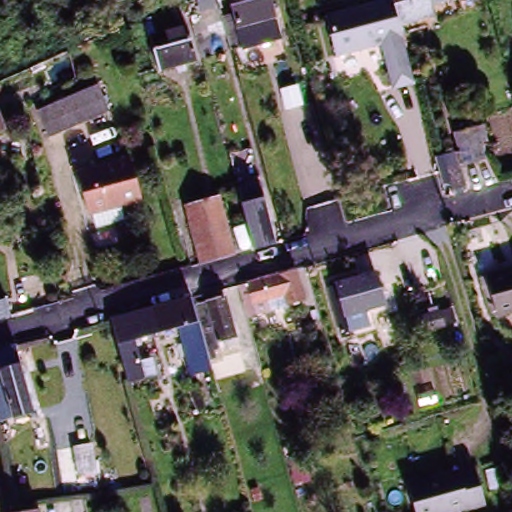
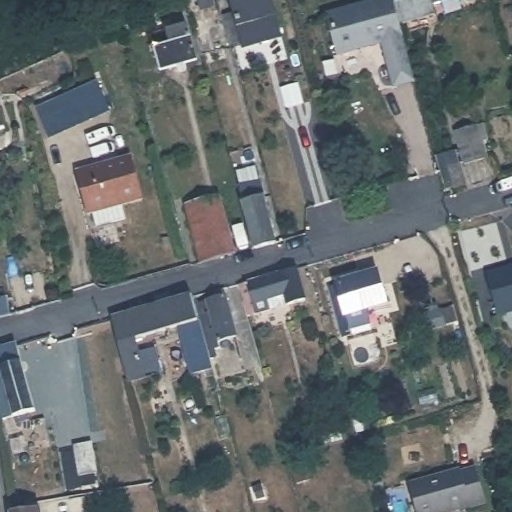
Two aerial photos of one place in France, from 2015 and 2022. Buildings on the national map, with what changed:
unchanged [(220,16),(230,13),(226,0),(271,0),(273,10),(280,39),(241,48),(240,44),(231,46),(227,47),(220,16)]
unchanged [(382,40),(337,51),(327,9),(363,0),(393,0),(393,1),(398,22),(412,78),(393,83),(382,40)]
unchanged [(393,0),(427,0),(428,5),(432,3),(435,12),(398,22),(393,1),(393,0)]
unchanged [(428,5),(427,0),(444,0),(432,3),(428,5)]
unchanged [(457,0),(459,0),(457,1),(457,0)]
unchanged [(216,23),(227,57),(206,63),(199,29),(216,23)]
unchanged [(191,30),(200,66),(163,74),(155,40),(191,30)]
unchanged [(97,87),(109,112),(49,139),(37,113),(97,87)]
unchanged [(16,133),(0,138),(0,117),(12,115),(16,133)]
unchanged [(498,132),(493,133),(498,151),(474,157),(465,122),(493,115),(498,132)]
unchanged [(471,154),(477,177),(463,181),(457,158),(471,154)]
unchanged [(135,156),(145,198),(121,203),(124,215),(95,222),(92,210),(87,211),(78,170),(95,166),(135,156)]
unchanged [(239,189),(261,184),(264,197),(275,245),(254,250),(239,189)]
unchanged [(188,205),(220,197),(234,255),(202,262),(188,205)]
unchanged [(485,272),(490,271),(512,265),(512,309),(502,312),(496,314),(485,272)]
unchanged [(378,267),(385,295),(371,298),(376,317),(352,323),(347,304),(340,276),(378,267)]
unchanged [(300,269),(307,302),(250,317),(241,283),(300,269)]
unchanged [(6,306),(0,307),(0,288),(2,287),(6,306)]
unchanged [(141,352),(147,376),(129,382),(117,341),(111,319),(191,296),(197,320),(176,325),(132,337),(135,350),(141,352)]
unchanged [(197,320),(201,333),(204,343),(207,342),(196,303),(220,296),(231,335),(222,337),(224,345),(215,347),(218,356),(208,360),(210,365),(210,367),(190,373),(176,325),(197,320)]
unchanged [(436,297),(440,314),(421,318),(417,302),(436,297)]
unchanged [(5,422),(0,403),(0,374),(0,373),(0,372),(0,355),(19,351),(36,414),(5,422)]
unchanged [(85,442),(90,471),(74,475),(69,445),(85,442)]
unchanged [(54,452),(56,466),(44,468),(41,454),(54,452)]
unchanged [(303,463),(307,479),(296,482),(292,466),(303,463)]
unchanged [(462,472),(462,475),(478,471),(488,507),(470,512),(418,512),(410,487),(462,472)]
unchanged [(28,511),(41,509),(41,512),(22,512),(28,511)]

